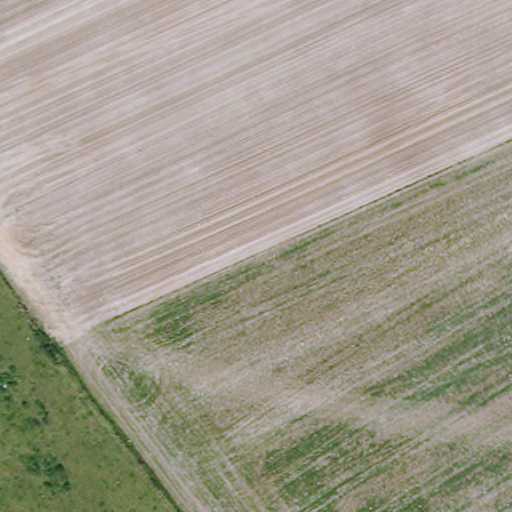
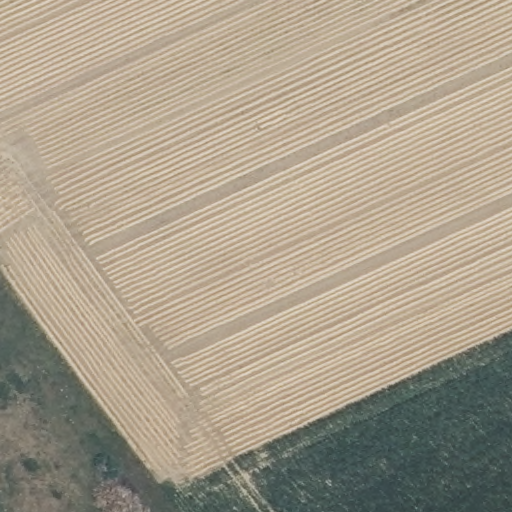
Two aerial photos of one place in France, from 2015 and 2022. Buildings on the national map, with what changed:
[]

